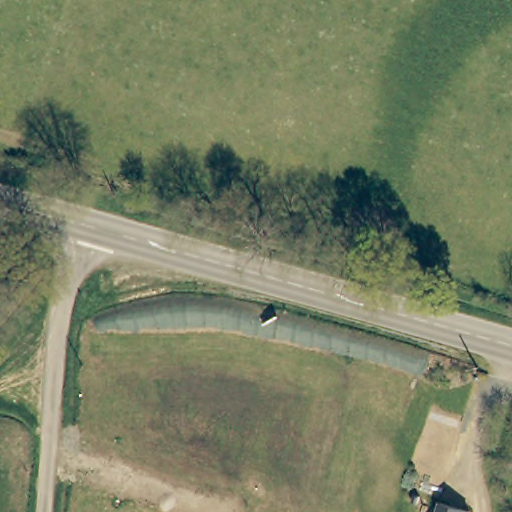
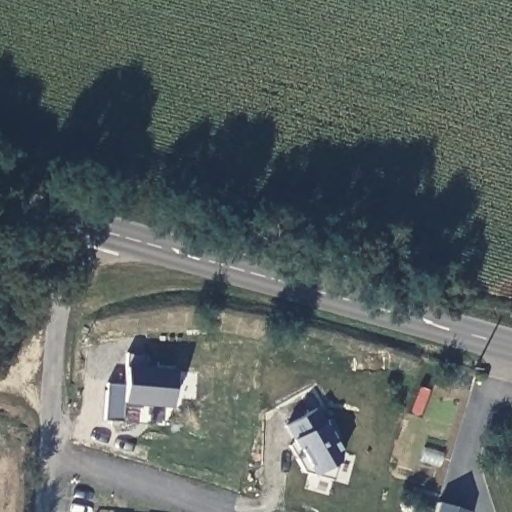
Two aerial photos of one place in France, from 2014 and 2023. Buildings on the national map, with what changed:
new [(105,419),(107,382),(124,383),(125,364),(127,353),(145,354),(145,366),(174,369),(177,372),(175,397),(172,397),(171,407),(126,403),(122,420),(105,419)]
new [(305,471),(298,459),(305,457),(301,448),(294,439),(286,426),(319,407),(327,422),(331,420),(340,435),(337,438),(343,449),(339,462),(339,463),(334,479),(305,471)]
unchanged [(464,512),(431,512),(435,497),(465,506),(464,512)]

